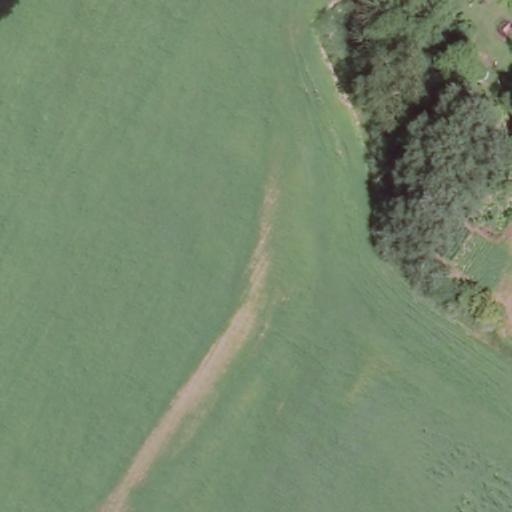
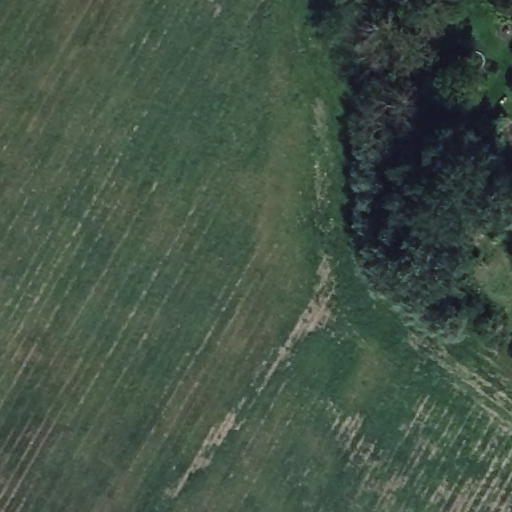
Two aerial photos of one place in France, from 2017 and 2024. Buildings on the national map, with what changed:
unchanged [(512,139),(508,145),(493,135),(501,121),(512,129),(512,139)]

